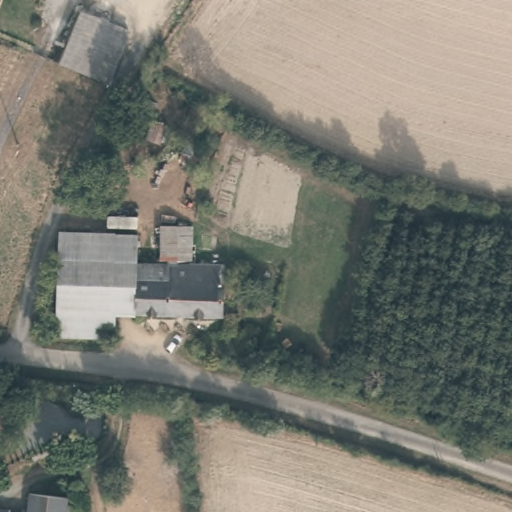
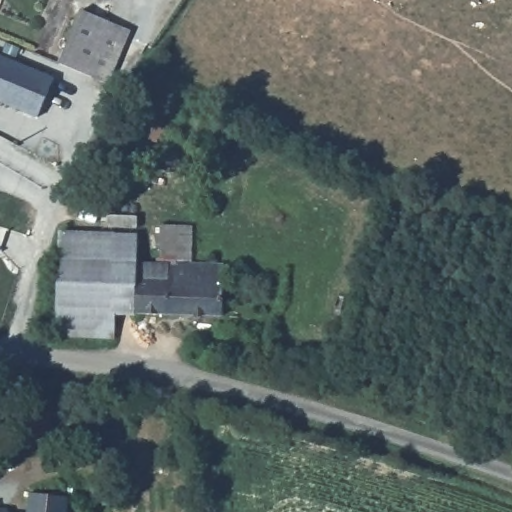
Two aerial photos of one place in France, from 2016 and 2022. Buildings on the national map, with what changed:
unchanged [(56,66),(79,13),(82,11),(123,29),(123,34),(103,81),(97,81),(56,66)]
new [(36,117),(0,102),(0,55),(53,76),(36,117)]
unchanged [(150,120),(161,121),(165,124),(159,143),(149,141),(144,138),(150,120)]
unchanged [(133,234),(134,262),(156,264),(158,261),(159,225),(191,225),(192,264),(221,264),(220,314),(112,313),(111,336),(56,335),(57,232),(133,234)]
unchanged [(67,502),(66,512),(27,512),(29,496),(67,502)]

